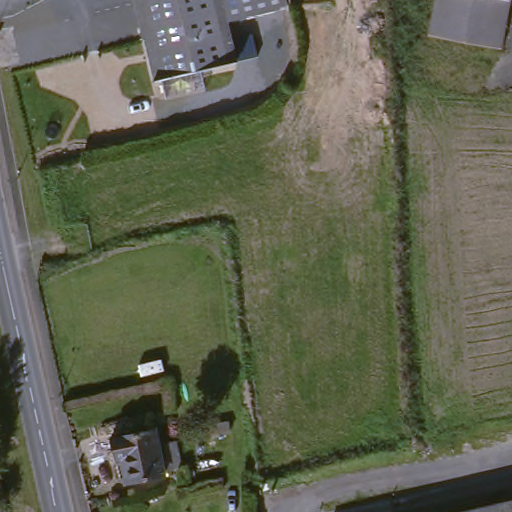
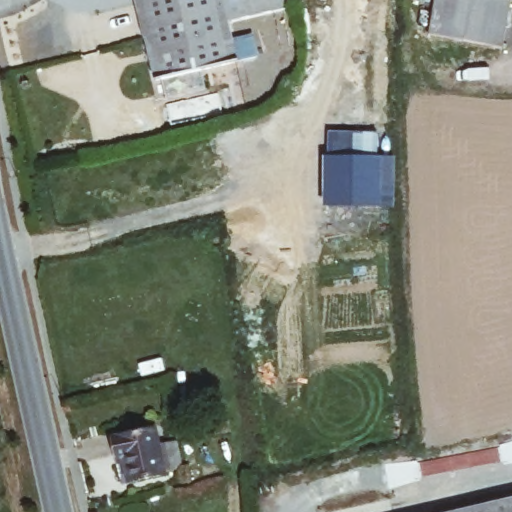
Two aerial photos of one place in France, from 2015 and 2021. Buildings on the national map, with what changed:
unchanged [(234,55),(161,72),(141,0),(220,0),(223,12),(234,55)]
unchanged [(220,0),(269,0),(223,12),(220,0)]
unchanged [(439,27),(442,0),(509,0),(504,37),(439,27)]
new [(395,157),(394,210),(323,207),(324,156),(395,157)]
unchanged [(126,456),(116,457),(112,435),(154,425),(156,440),(169,437),(174,461),(161,465),(163,471),(131,479),(126,456)]
demolished [(344,498),(341,490),(363,486),(364,495),(344,498)]
unchanged [(512,502),(512,512),(463,512),(512,502)]

